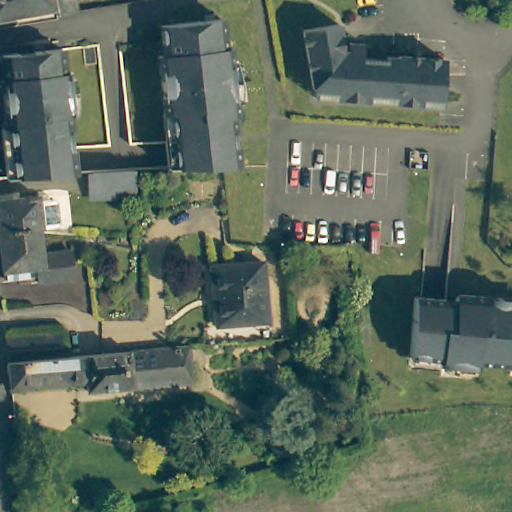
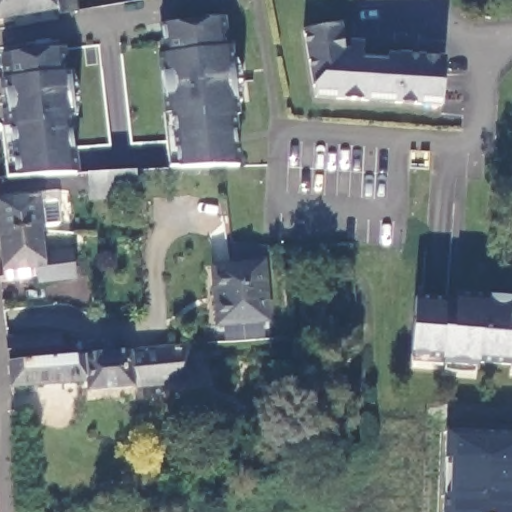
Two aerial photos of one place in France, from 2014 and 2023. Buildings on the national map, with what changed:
unchanged [(74,14),(58,17),(57,11),(0,20),(0,0),(72,0),(74,14)]
unchanged [(486,5),(476,0),(489,0),(486,5)]
unchanged [(170,110),(163,111),(156,53),(163,52),(159,20),(212,13),(216,45),(221,44),(230,103),(222,104),(232,165),(207,166),(177,168),(170,110)]
unchanged [(299,29),(333,22),(339,51),(344,51),(345,43),(358,45),(356,58),(381,62),(381,58),(388,59),(389,104),(311,96),(299,29)]
unchanged [(1,78),(4,78),(1,53),(62,45),(64,68),(69,68),(74,110),(70,110),(78,173),(14,176),(1,78)]
unchanged [(394,59),(394,57),(440,63),(436,109),(389,104),(388,59),(394,59)]
unchanged [(89,172),(94,172),(116,170),(127,170),(136,170),(137,191),(138,195),(129,195),(91,198),(89,172)]
unchanged [(40,232),(0,236),(0,204),(38,200),(39,225),(76,225),(75,237),(40,236),(40,232)]
unchanged [(77,282),(41,285),(39,269),(2,275),(0,258),(0,236),(40,232),(40,236),(42,257),(74,254),(77,282)]
unchanged [(264,323),(216,328),(211,269),(259,264),(264,323)]
unchanged [(476,371),(440,368),(441,362),(409,359),(414,299),(447,302),(446,311),(454,312),(454,305),(454,304),(455,303),(455,302),(456,301),(456,300),(457,299),(458,299),(459,298),(460,298),(461,297),(462,297),(512,301),(512,368),(477,365),(476,371)]
unchanged [(113,351),(186,344),(190,380),(156,383),(90,389),(88,377),(66,379),(64,355),(107,351),(113,351)]
unchanged [(11,385),(9,360),(58,356),(64,355),(66,379),(11,385)]
unchanged [(146,424),(152,425),(151,432),(151,431),(139,430),(137,424),(146,424)]
new [(512,431),(512,512),(443,512),(445,429),(512,431)]

